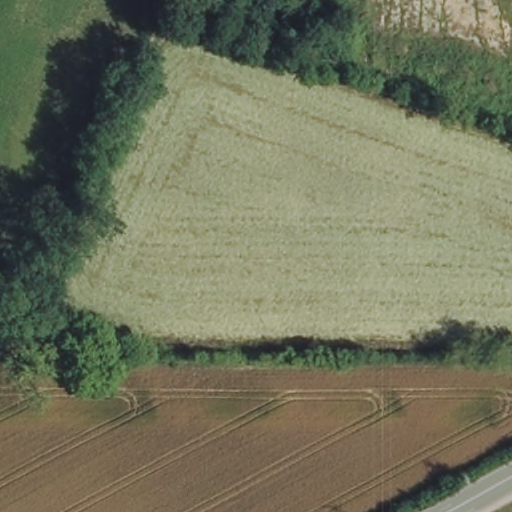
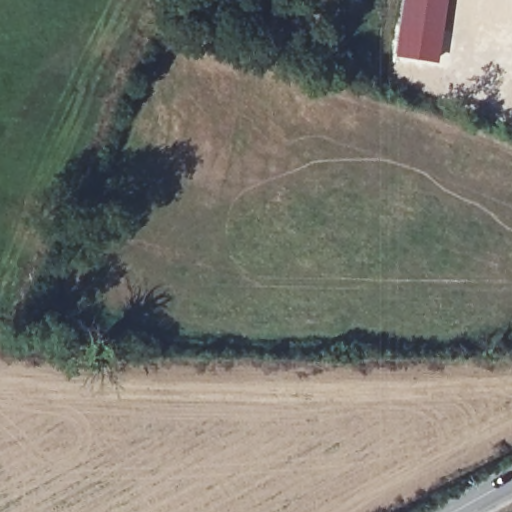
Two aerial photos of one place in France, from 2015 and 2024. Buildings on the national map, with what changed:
new [(402,0),(446,0),(436,61),(394,54),(402,0)]

